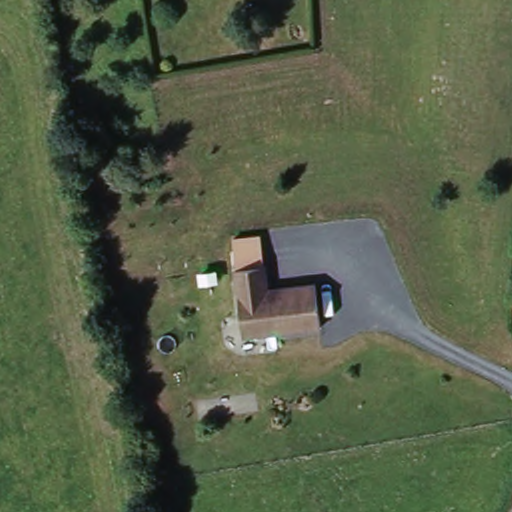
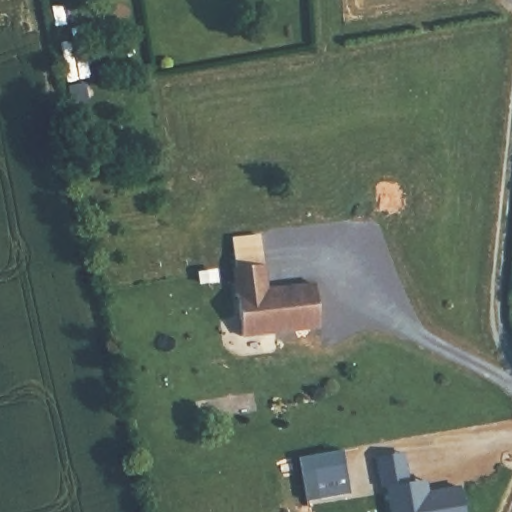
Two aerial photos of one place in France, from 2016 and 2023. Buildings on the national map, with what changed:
unchanged [(266,288),(266,294),(315,288),(321,331),(243,339),(234,271),(264,268),(266,288)]
new [(344,464),(349,494),(305,501),(300,473),(344,464)]
new [(419,476),(421,490),(458,486),(462,512),(393,512),(388,479),(419,476)]

